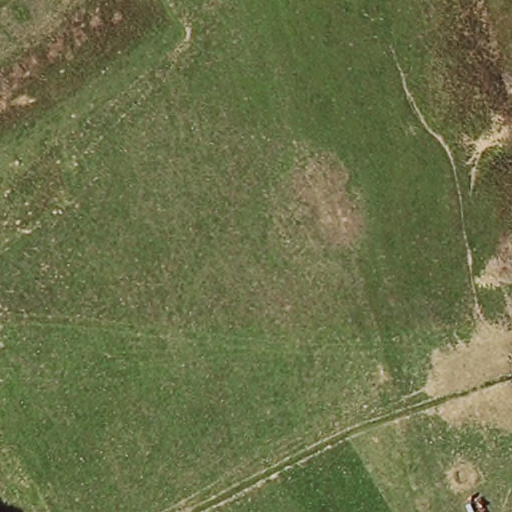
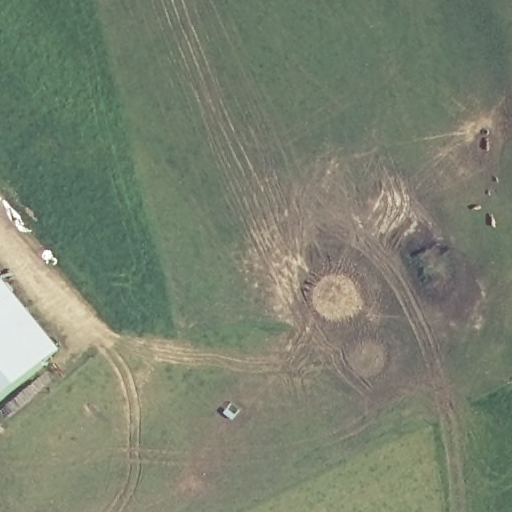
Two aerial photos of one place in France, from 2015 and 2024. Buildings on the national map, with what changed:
new [(0,404),(0,267),(68,350),(0,404)]

